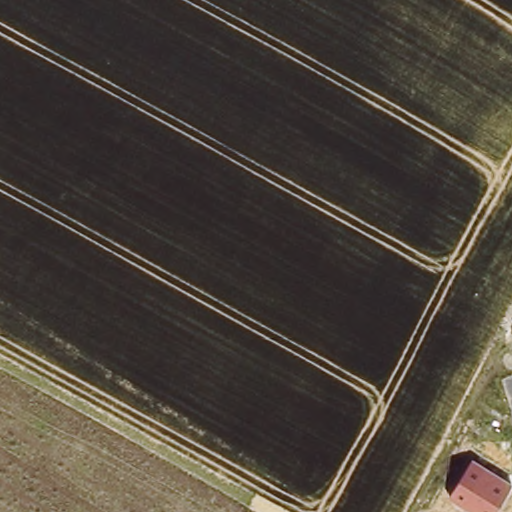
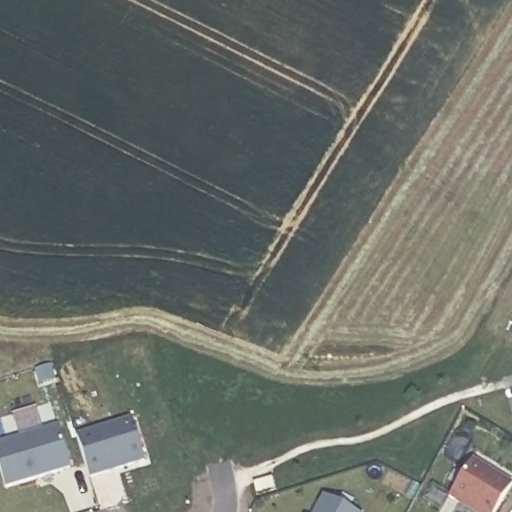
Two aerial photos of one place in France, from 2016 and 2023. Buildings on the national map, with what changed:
new [(78,434),(131,418),(146,463),(90,478),(78,434)]
new [(0,442),(59,425),(72,468),(5,488),(0,467),(0,442)]
unchanged [(451,497),(474,458),(512,482),(512,485),(495,512),(477,512),(451,497)]
new [(322,495),(354,512),(314,512),(322,495)]

